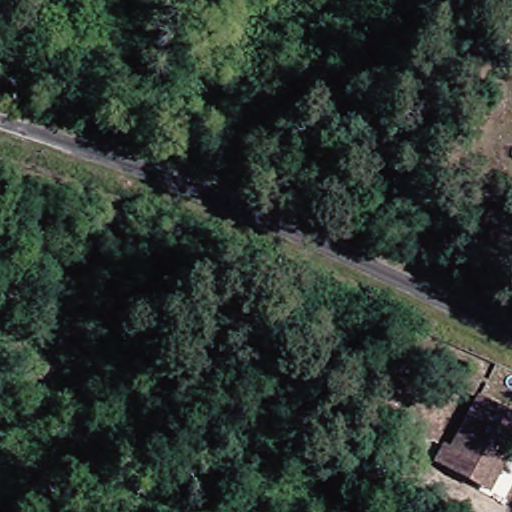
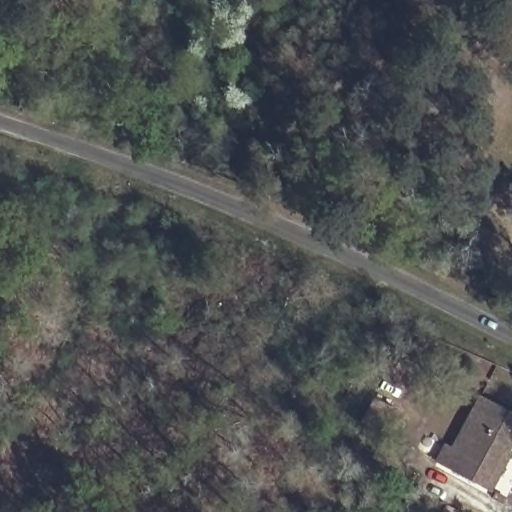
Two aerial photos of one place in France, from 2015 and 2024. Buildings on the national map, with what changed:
unchanged [(489,483),(443,460),(451,444),(459,447),(485,395),(512,408),(512,457),(498,488),(489,483)]
unchanged [(397,442),(373,430),(385,406),(408,417),(397,442)]

